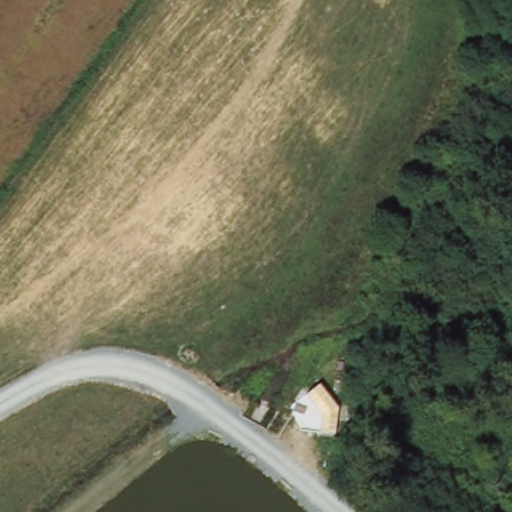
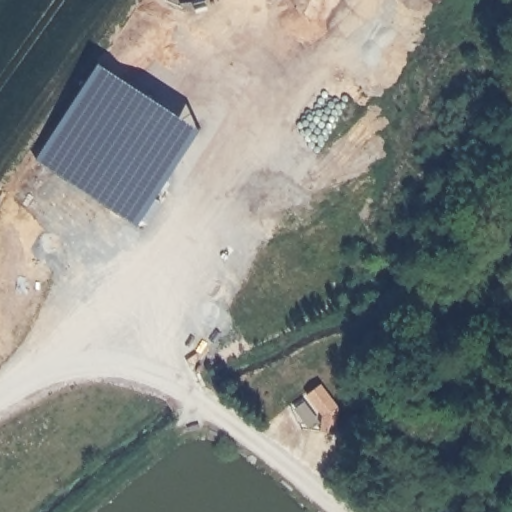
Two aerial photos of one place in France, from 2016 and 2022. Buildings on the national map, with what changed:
new [(100,63),(200,128),(137,224),(38,160),(100,63)]
unchanged [(341,408),(337,438),(320,436),(322,414),(306,395),(321,384),(341,408)]

